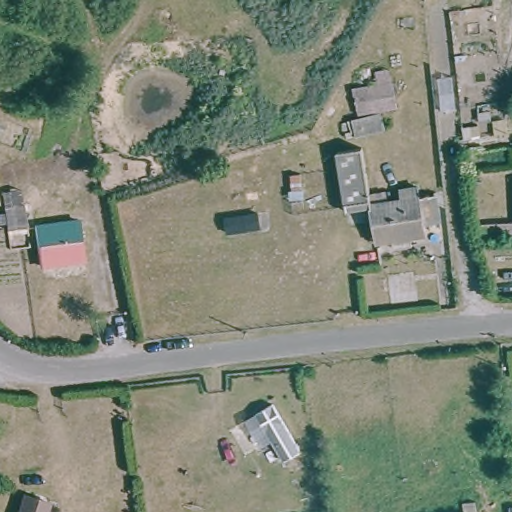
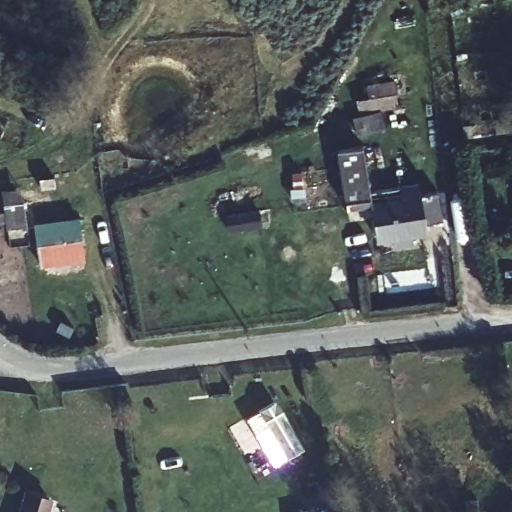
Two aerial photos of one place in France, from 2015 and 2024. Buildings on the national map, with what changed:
unchanged [(380,117),(382,126),(387,125),(390,134),(362,141),(360,124),(380,117)]
unchanged [(349,200),(341,149),(365,144),(372,190),(390,186),(392,198),(408,194),(406,185),(421,183),(423,194),(440,190),(444,217),(425,221),(427,231),(415,234),(416,242),(396,245),(395,235),(379,237),(375,204),(351,207),(349,200)]
unchanged [(31,195),(38,240),(15,244),(10,197),(31,195)]
unchanged [(52,270),(43,225),(82,217),(91,261),(52,270)]
unchanged [(479,236),(477,224),(512,220),(512,233),(479,236)]
unchanged [(273,401),(302,450),(284,462),(271,440),(262,445),(245,418),(273,401)]
unchanged [(53,500),(49,512),(16,512),(23,491),(53,500)]

